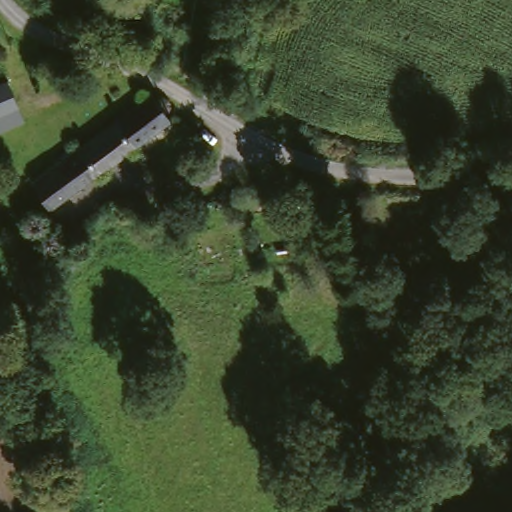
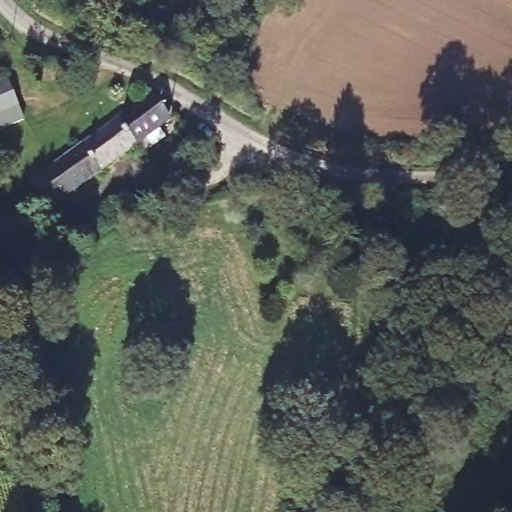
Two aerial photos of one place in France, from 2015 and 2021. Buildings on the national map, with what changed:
unchanged [(16,112),(0,116),(0,96),(11,93),(16,112)]
unchanged [(142,100),(162,124),(126,149),(109,124),(142,100)]
unchanged [(109,124),(126,149),(43,210),(24,185),(109,124)]

